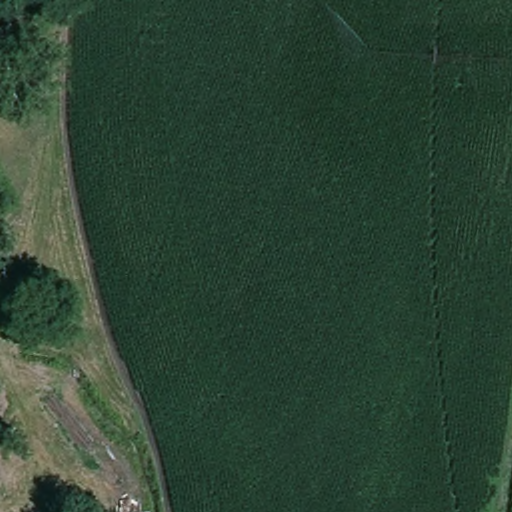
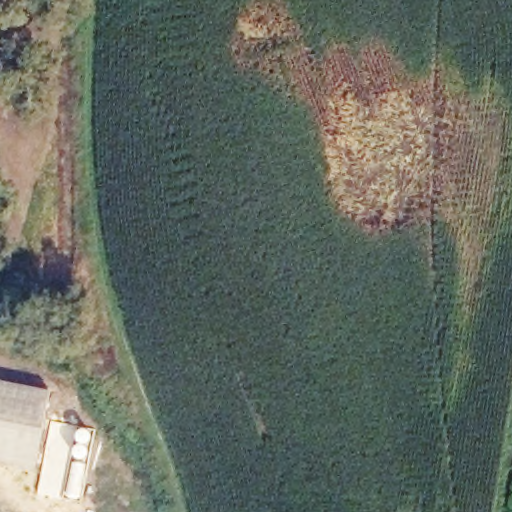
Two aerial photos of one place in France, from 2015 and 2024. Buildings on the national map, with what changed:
new [(35,471),(0,464),(0,383),(50,392),(35,471)]

